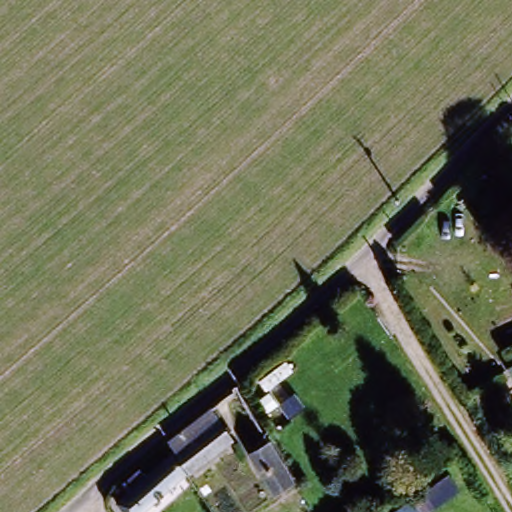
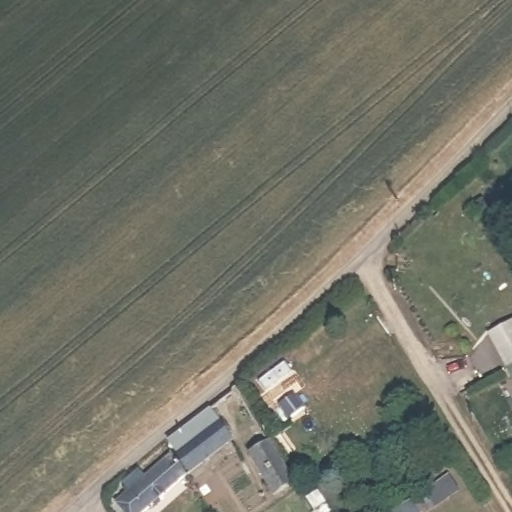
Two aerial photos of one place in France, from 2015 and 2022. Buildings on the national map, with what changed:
new [(484,332),(512,318),(512,385),(484,332)]
unchanged [(205,406),(226,440),(186,466),(167,439),(205,406)]
unchanged [(245,455),(264,442),(285,479),(265,490),(245,455)]
unchanged [(137,497),(131,488),(150,473),(157,482),(177,468),(186,483),(145,512),(130,512),(125,505),(137,497)]

